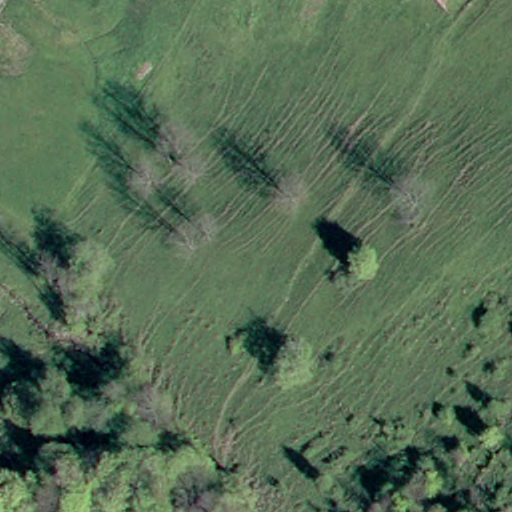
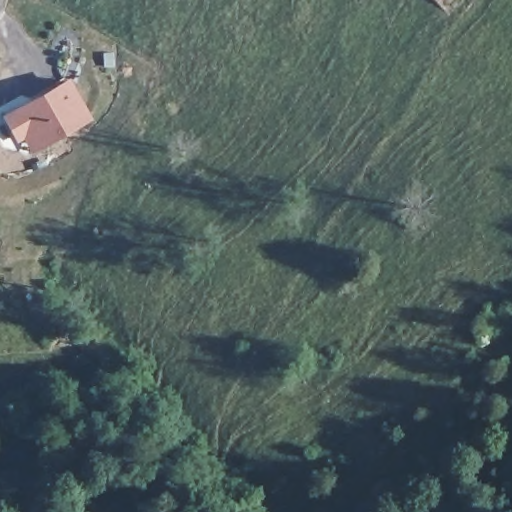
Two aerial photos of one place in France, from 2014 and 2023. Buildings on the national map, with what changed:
unchanged [(441,0),(468,0),(453,14),(441,0)]
new [(94,119),(32,154),(25,139),(18,143),(3,115),(71,77),(94,119)]

